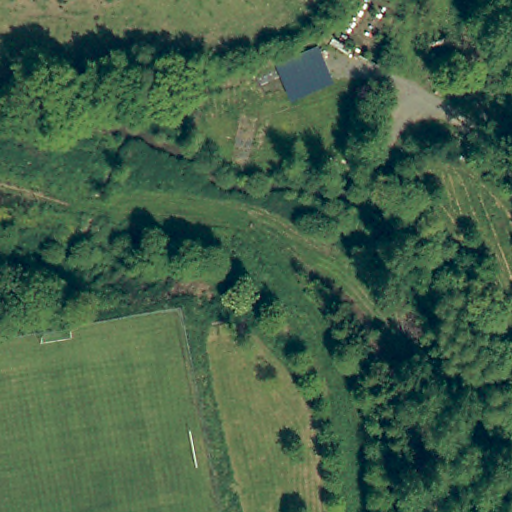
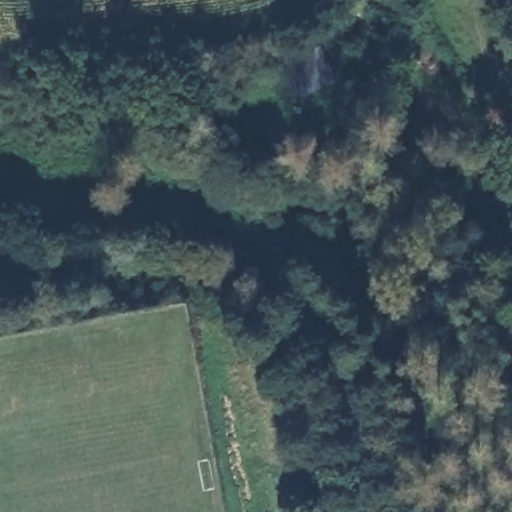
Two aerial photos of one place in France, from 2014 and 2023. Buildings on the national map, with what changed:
unchanged [(292,102),(275,63),(320,45),(337,83),(292,102)]

